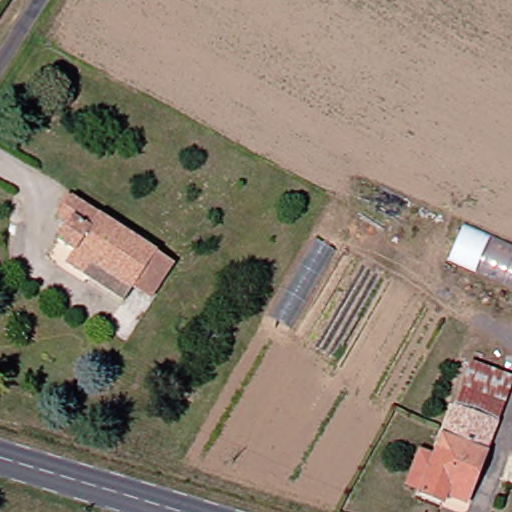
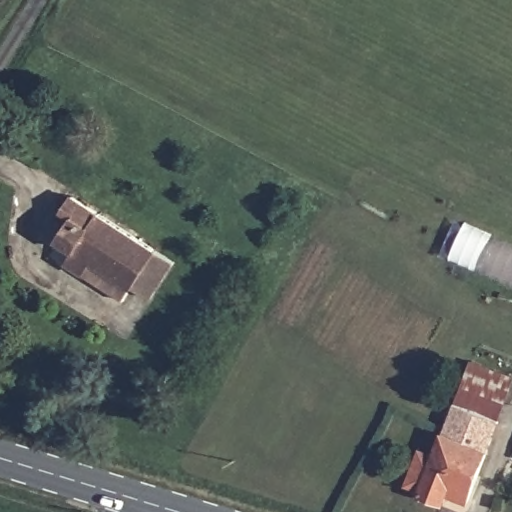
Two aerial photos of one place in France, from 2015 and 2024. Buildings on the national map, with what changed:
unchanged [(145,296),(129,282),(119,296),(64,261),(72,249),(54,236),(65,220),(56,213),(67,196),(151,253),(168,265),(145,296)]
unchanged [(512,247),(512,287),(448,261),(463,227),(512,247)]
unchanged [(332,246),(287,328),(263,314),(307,234),(332,246)]
unchanged [(456,402),(467,363),(509,377),(497,415),(456,402)]
unchanged [(422,490),(456,402),(497,415),(465,506),(422,490)]

